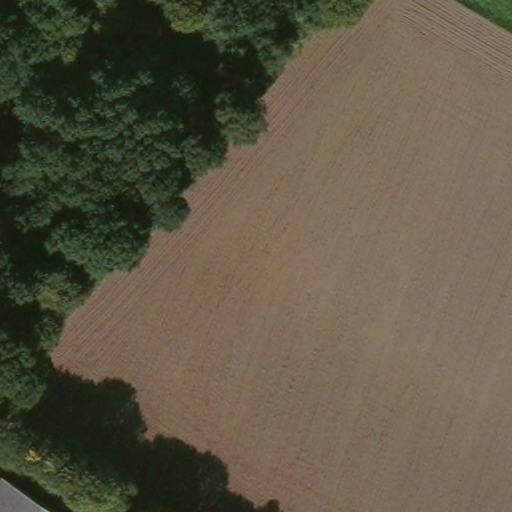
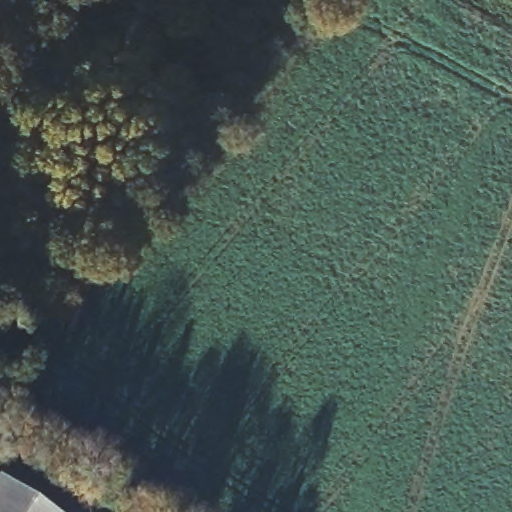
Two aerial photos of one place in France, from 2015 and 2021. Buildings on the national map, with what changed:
unchanged [(75,512),(0,512),(0,500),(22,471),(75,512)]

